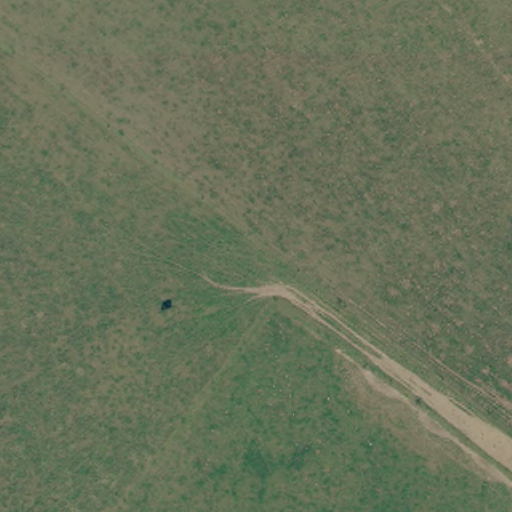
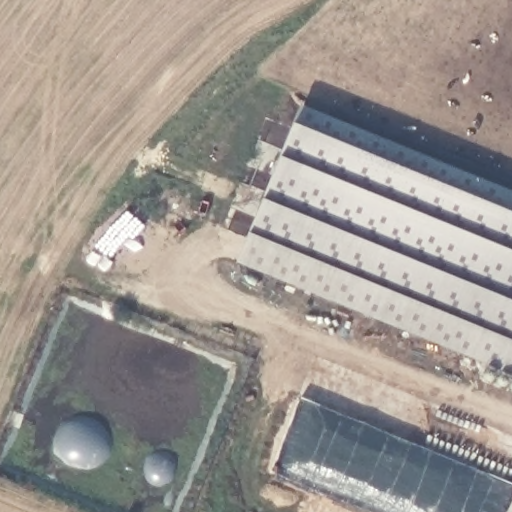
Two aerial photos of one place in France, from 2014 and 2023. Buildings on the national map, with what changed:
new [(249,233),(292,123),(300,106),(512,192),(512,375),(236,262),(249,233)]

